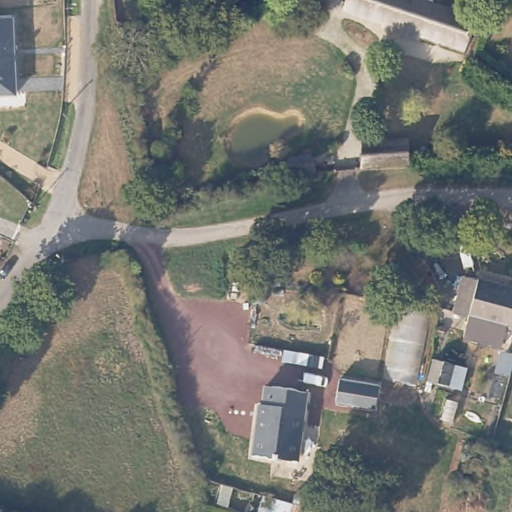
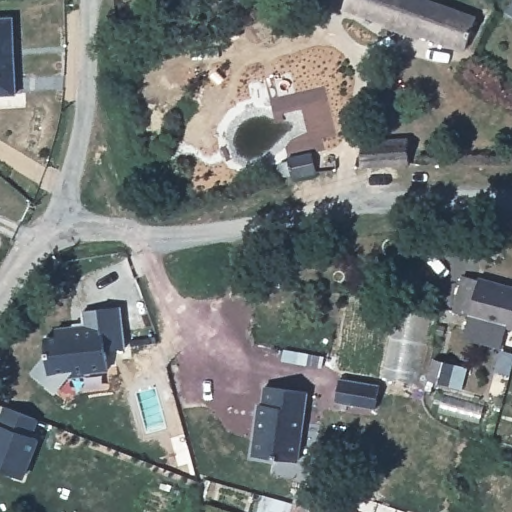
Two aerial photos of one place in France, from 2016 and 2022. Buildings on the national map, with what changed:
unchanged [(466,51),(422,33),(418,41),(384,28),(387,21),(347,6),(349,0),(433,0),(481,18),(466,51)]
unchanged [(508,14),(512,5),(512,16),(508,14)]
unchanged [(0,93),(0,16),(11,15),(19,92),(0,93)]
unchanged [(405,166),(360,166),(365,141),(405,141),(405,166)]
unchanged [(313,174),(285,173),(285,170),(279,170),(277,169),(275,166),(277,164),(278,162),(280,160),(283,160),(285,161),(285,157),(311,156),(313,174)]
unchanged [(478,334),(484,314),(484,310),(468,305),(479,274),(494,278),(496,276),(512,281),(512,345),(478,334)]
new [(126,349),(106,351),(108,370),(86,373),(85,376),(69,378),(56,394),(29,371),(48,350),(44,337),(57,336),(55,327),(84,323),(82,311),(121,306),(126,349)]
unchanged [(429,372),(437,354),(456,362),(449,381),(429,372)]
unchanged [(312,388),(307,456),(259,453),(264,402),(269,402),(270,384),(312,388)]
new [(39,438),(24,479),(0,469),(0,418),(4,407),(39,419),(33,435),(39,438)]
unchanged [(270,512),(275,500),(309,512),(270,512)]

